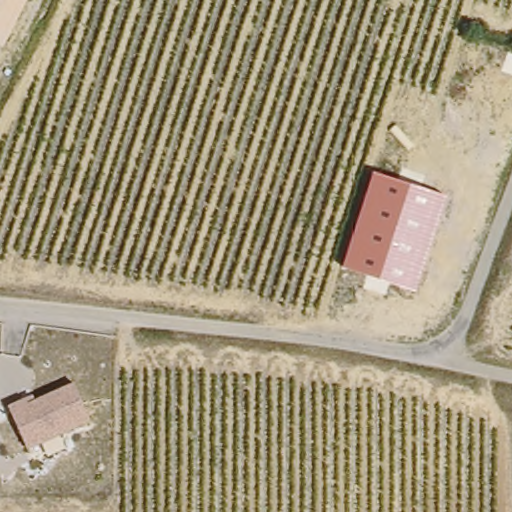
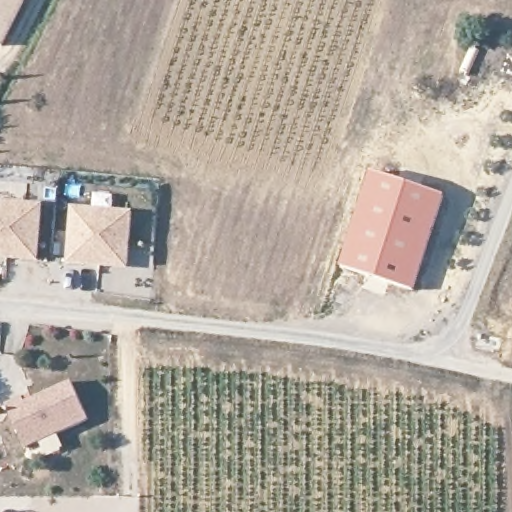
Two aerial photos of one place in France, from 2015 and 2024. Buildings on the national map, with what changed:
unchanged [(0,0),(19,0),(0,39),(0,0)]
unchanged [(373,171),(444,195),(414,289),(343,266),(373,171)]
new [(38,261),(0,258),(0,202),(43,204),(38,261)]
new [(73,208),(132,212),(128,268),(67,263),(73,208)]
unchanged [(8,404),(33,393),(36,399),(74,382),(89,421),(58,435),(64,447),(46,456),(41,443),(27,448),(8,404)]

